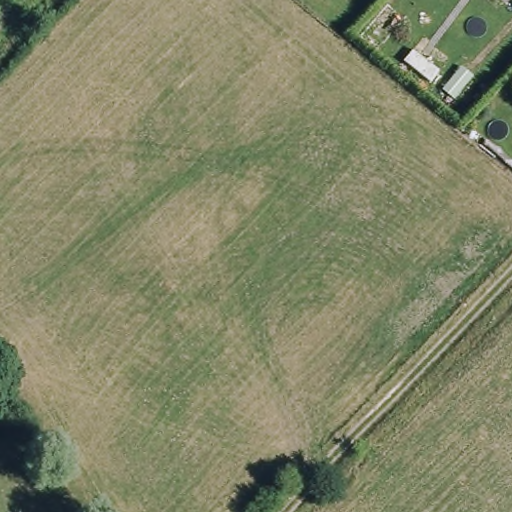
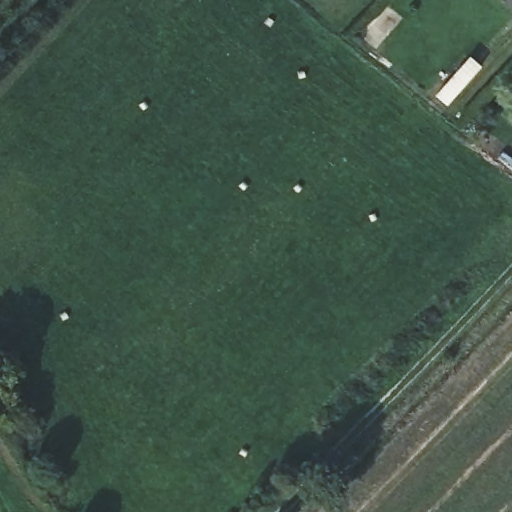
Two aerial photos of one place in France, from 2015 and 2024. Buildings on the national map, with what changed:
unchanged [(464,85),(451,98),(441,87),(454,74),(464,85)]

